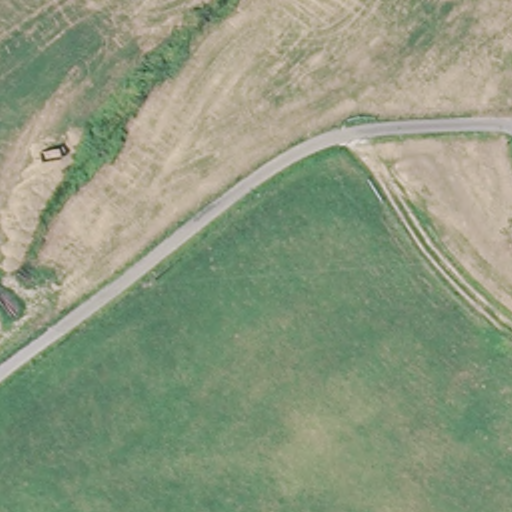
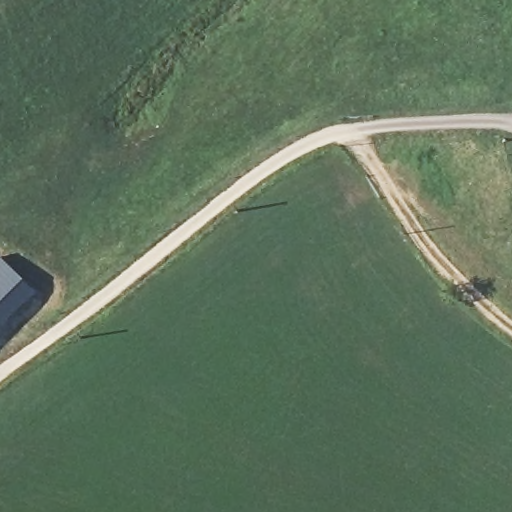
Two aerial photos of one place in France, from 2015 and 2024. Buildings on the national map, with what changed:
new [(35,292),(0,327),(0,257),(25,281),(35,292)]

